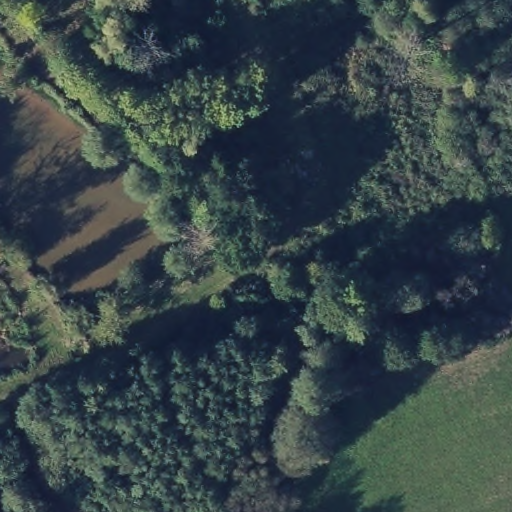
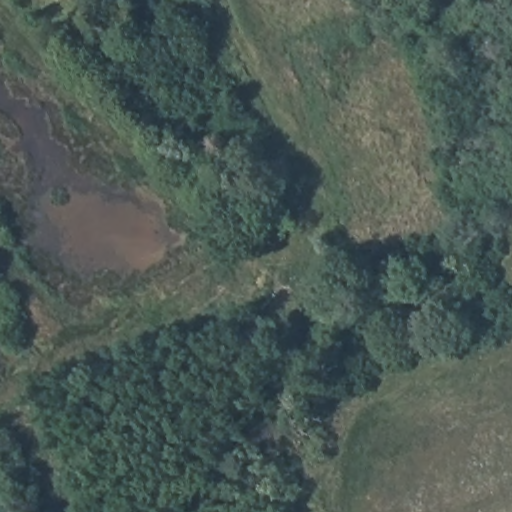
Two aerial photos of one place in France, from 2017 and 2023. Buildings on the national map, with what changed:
unchanged [(53,0),(85,0),(67,15),(53,0)]

